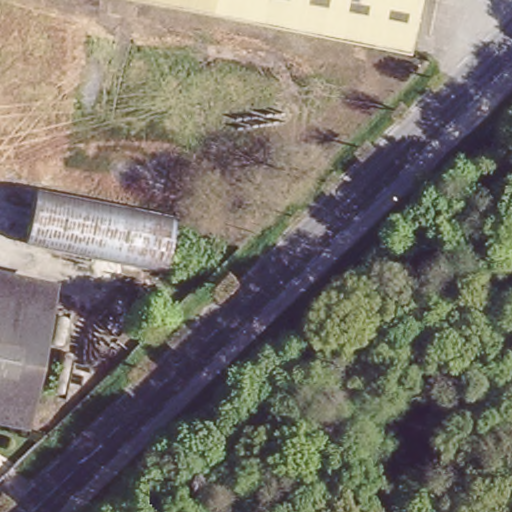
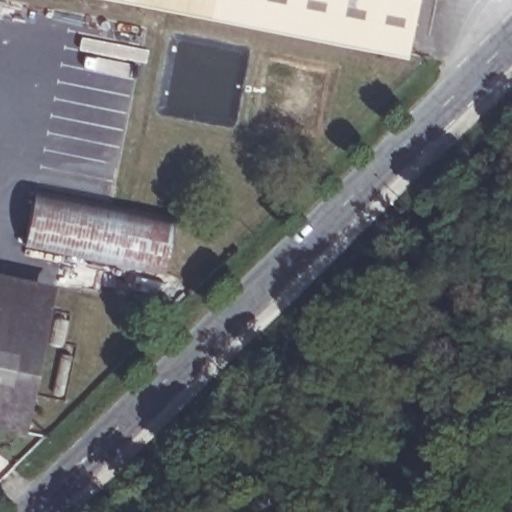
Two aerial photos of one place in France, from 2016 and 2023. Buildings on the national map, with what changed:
unchanged [(403,52),(139,0),(413,0),(403,52)]
unchanged [(21,237),(29,202),(33,183),(173,212),(171,226),(161,266),(21,237)]
unchanged [(53,280),(49,306),(0,296),(0,269),(53,280)]
unchanged [(0,313),(0,296),(53,307),(49,323),(0,313)]
unchanged [(49,323),(26,432),(0,426),(0,313),(49,323)]

